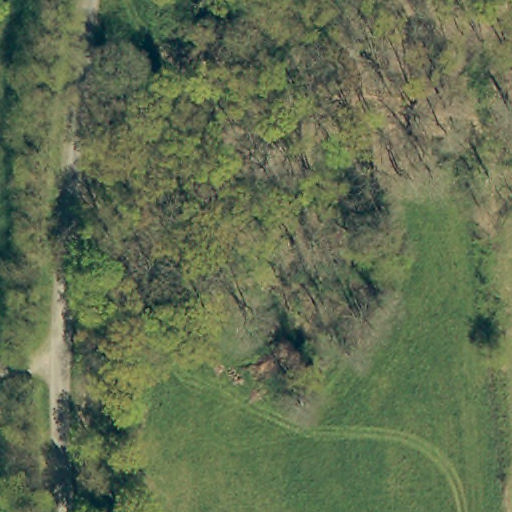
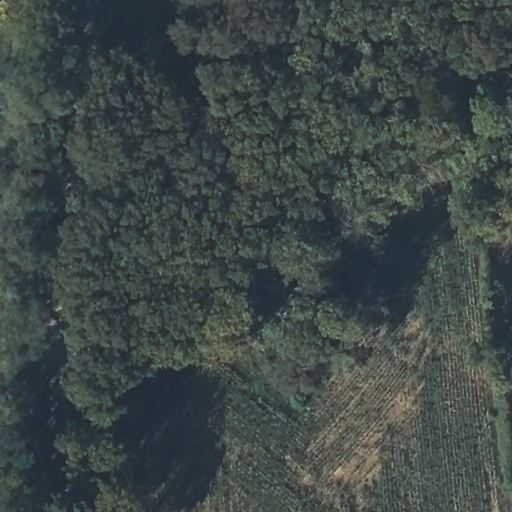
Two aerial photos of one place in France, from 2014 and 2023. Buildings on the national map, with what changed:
[]

